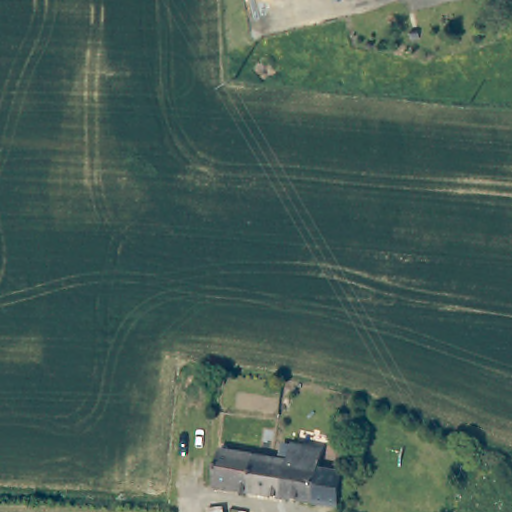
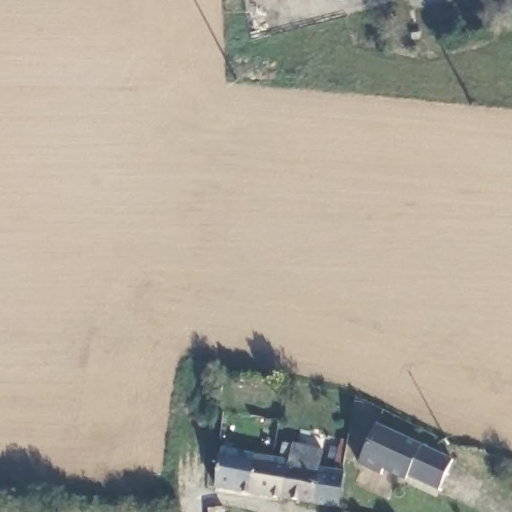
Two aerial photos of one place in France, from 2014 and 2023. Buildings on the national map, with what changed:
unchanged [(356,1),(355,0),(357,0),(356,1)]
unchanged [(501,19),(482,22),(479,4),(500,1),(501,19)]
new [(454,460),(440,491),(410,477),(408,481),(384,470),(382,474),(357,464),(376,424),(454,460)]
unchanged [(287,462),(289,446),(323,451),(320,472),(346,476),(342,508),(281,499),(287,462)]
unchanged [(221,490),(222,453),(251,457),(249,494),(221,490)]
unchanged [(281,499),(249,494),(251,457),(273,460),(287,462),(281,499)]
unchanged [(226,512),(208,512),(208,510),(225,507),(226,512)]

